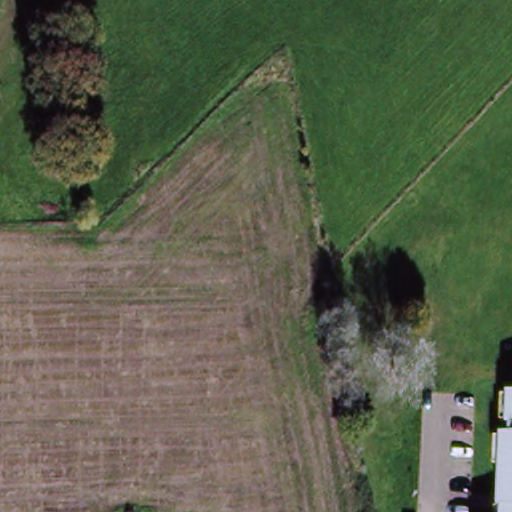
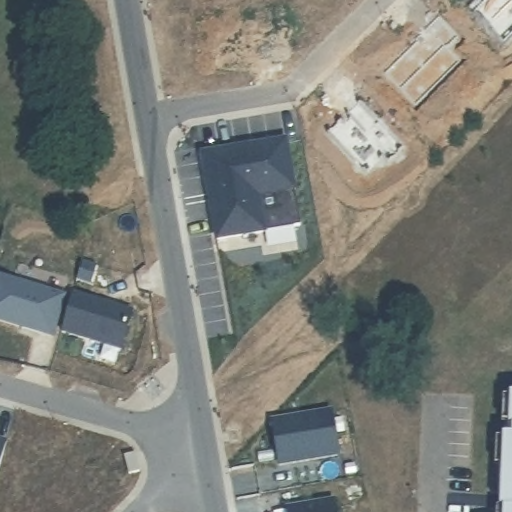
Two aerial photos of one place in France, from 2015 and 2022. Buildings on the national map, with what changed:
new [(287,142),(301,226),(218,240),(203,156),(287,142)]
new [(133,310),(122,350),(61,332),(70,292),(133,310)]
unchanged [(511,400),(512,400),(512,429),(510,429),(511,400)]
new [(332,412),(340,456),(280,466),(272,422),(332,412)]
unchanged [(508,511),(502,511),(506,442),(512,442),(512,512),(508,512),(508,511)]
new [(6,450),(0,471),(0,448),(6,450)]
new [(133,461),(138,480),(127,482),(123,464),(133,461)]
new [(334,502),(336,512),(288,512),(287,511),(334,502)]

